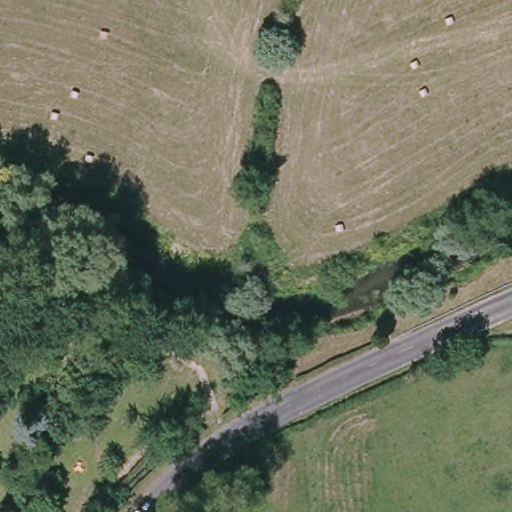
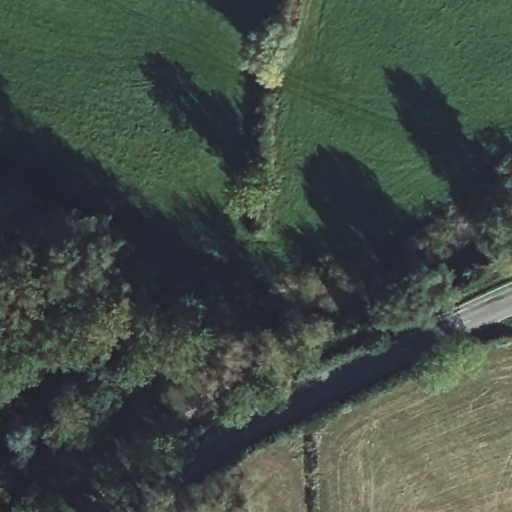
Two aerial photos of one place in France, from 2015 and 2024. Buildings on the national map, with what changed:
[]

